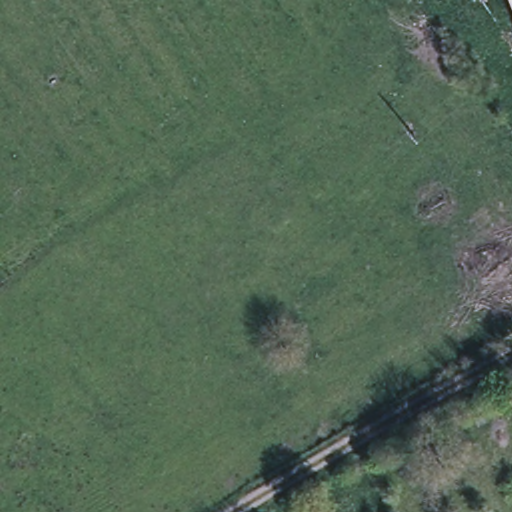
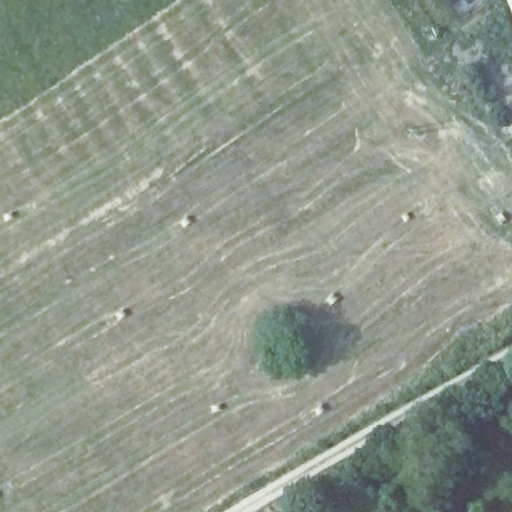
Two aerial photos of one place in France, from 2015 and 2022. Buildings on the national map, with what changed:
unchanged [(512,0),(512,10),(508,0),(512,0)]

